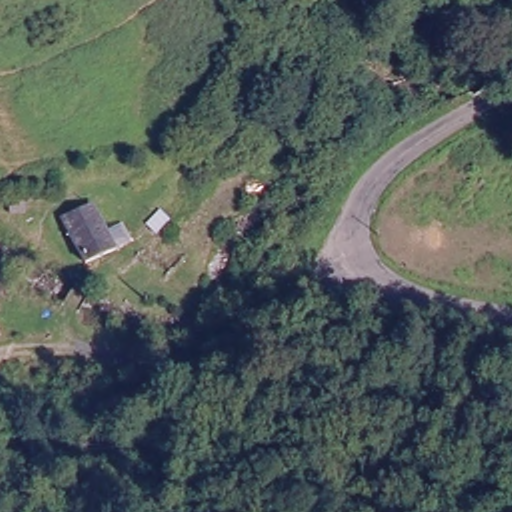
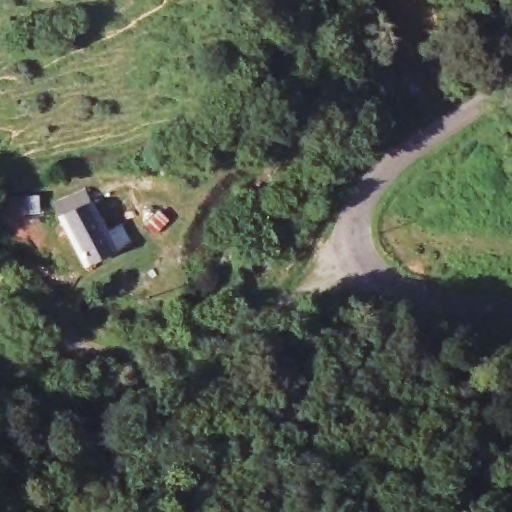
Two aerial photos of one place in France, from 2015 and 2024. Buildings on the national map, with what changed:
unchanged [(90,195),(95,207),(102,203),(105,210),(99,213),(116,254),(84,266),(63,219),(82,212),(76,201),(90,195)]

